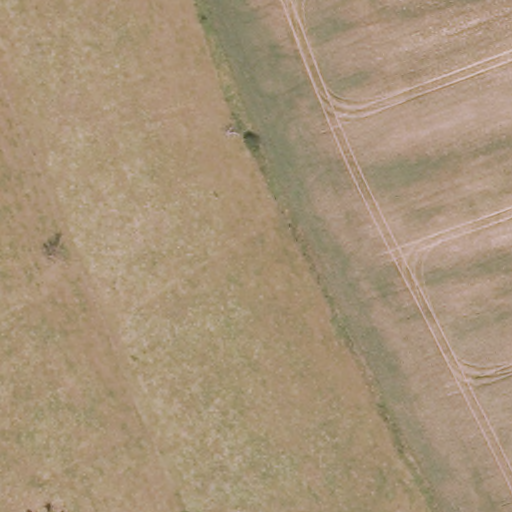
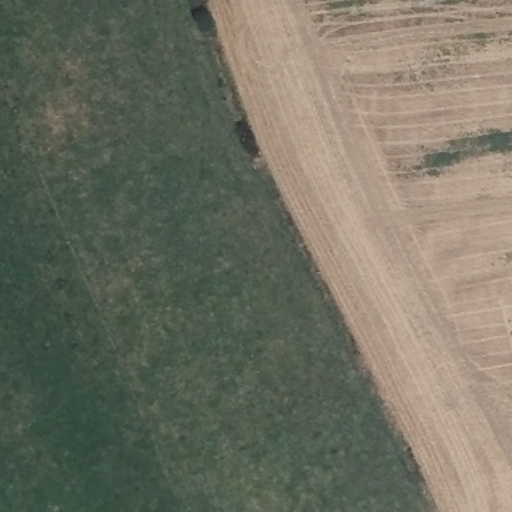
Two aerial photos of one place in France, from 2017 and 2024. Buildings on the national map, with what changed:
[]

